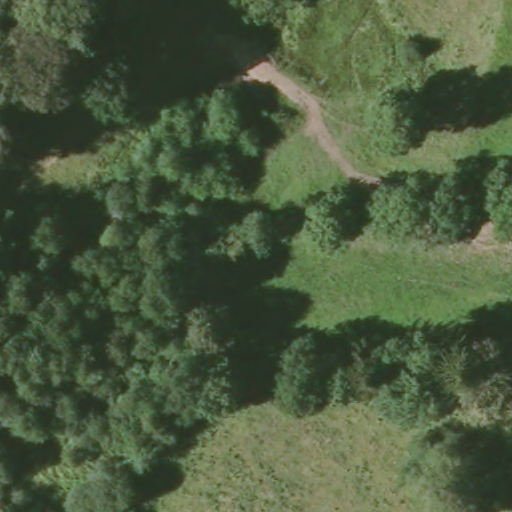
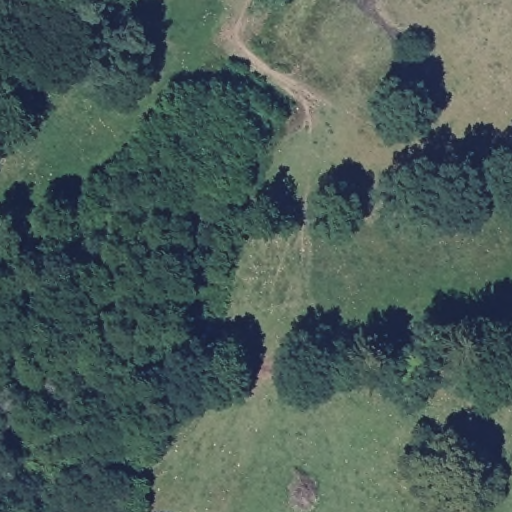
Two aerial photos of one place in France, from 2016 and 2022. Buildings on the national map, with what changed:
[]

